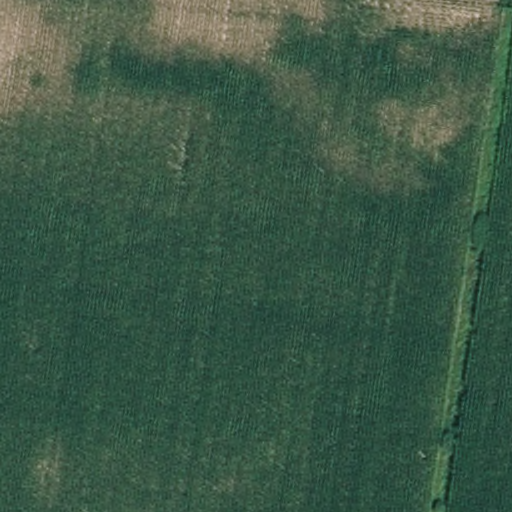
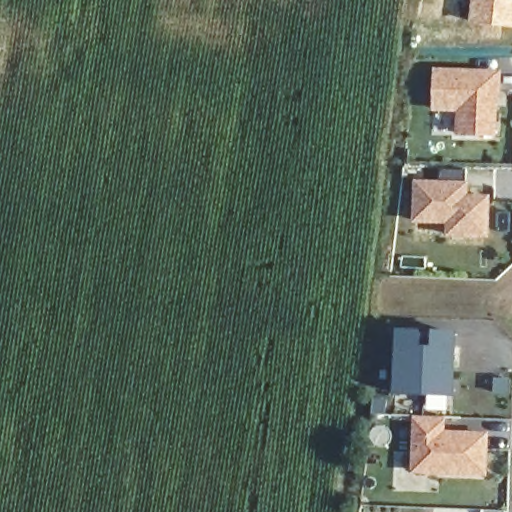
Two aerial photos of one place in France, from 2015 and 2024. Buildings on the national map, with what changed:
new [(479,0),(512,0),(512,27),(477,24),(479,0)]
new [(434,68),(502,71),(499,137),(456,136),(457,112),(433,112),(434,68)]
new [(413,223),(414,181),(441,181),(442,170),(467,171),(467,181),(470,182),(470,195),(492,196),(491,240),(446,238),(447,225),(413,223)]
new [(407,333),(429,334),(428,354),(441,355),(442,335),(464,336),(462,397),(404,395),(407,333)]
new [(452,418),(451,435),(459,435),(495,437),(494,476),(423,473),(425,417),(452,418)]

